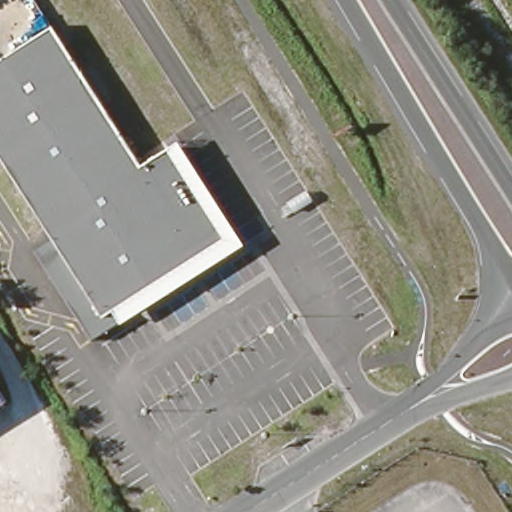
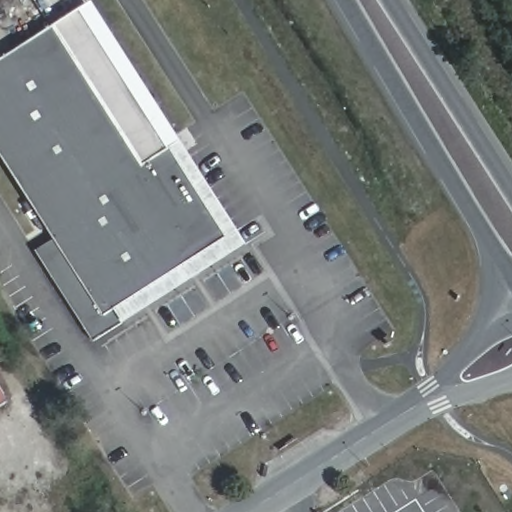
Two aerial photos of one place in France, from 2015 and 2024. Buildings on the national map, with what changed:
new [(90,2),(179,143),(141,165),(52,30),(90,2)]
unchanged [(179,143),(246,245),(121,325),(93,341),(35,251),(54,239),(0,153),(0,62),(52,30),(141,165),(179,143)]
unchanged [(7,402),(0,407),(0,391),(7,402)]

